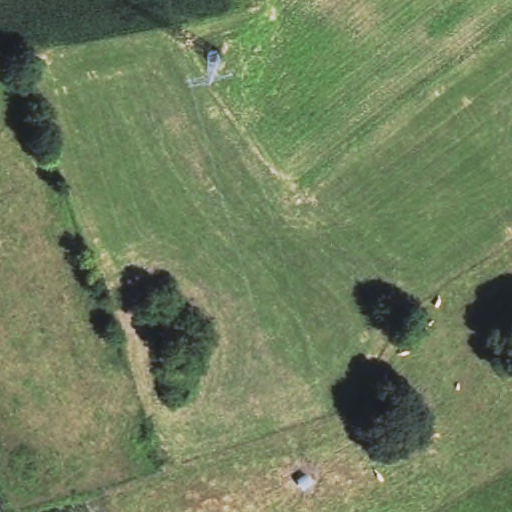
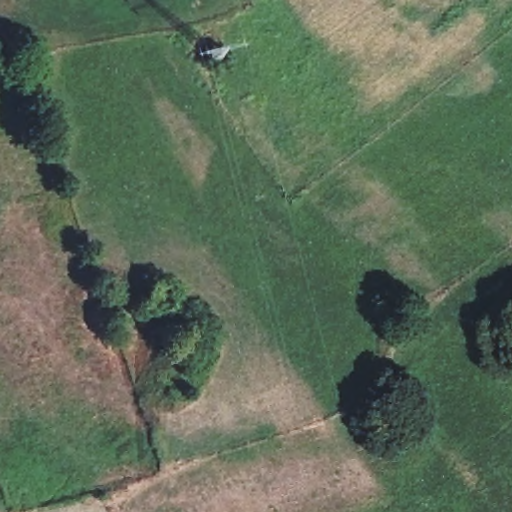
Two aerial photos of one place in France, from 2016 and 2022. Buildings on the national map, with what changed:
unchanged [(185,321),(196,340),(181,348),(172,353),(162,333),(185,321)]

